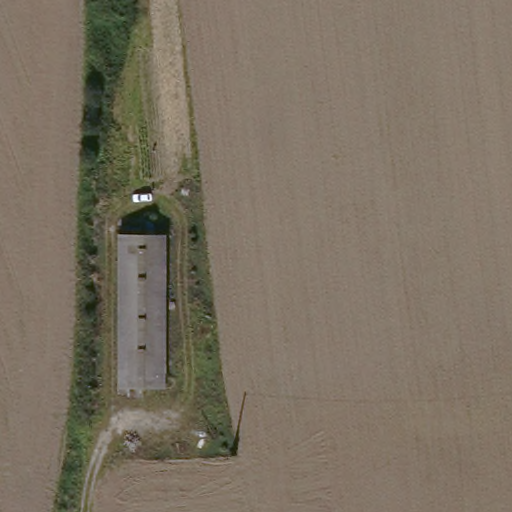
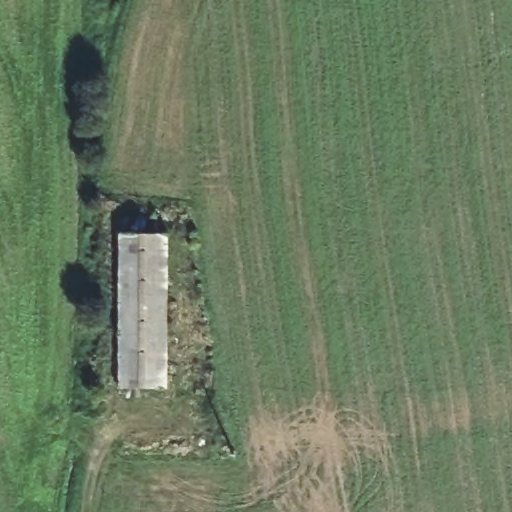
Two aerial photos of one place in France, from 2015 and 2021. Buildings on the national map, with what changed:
unchanged [(167,230),(164,387),(118,387),(121,229),(167,230)]

